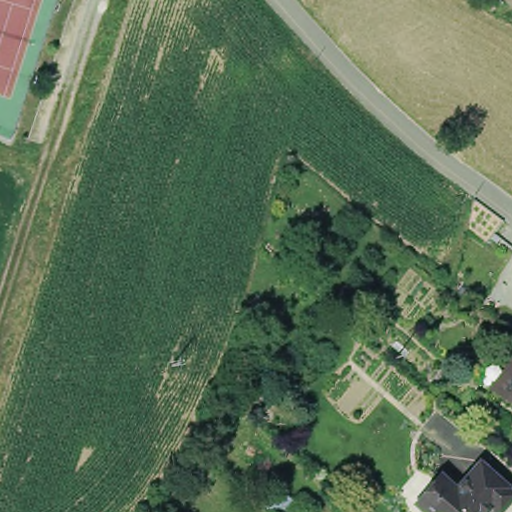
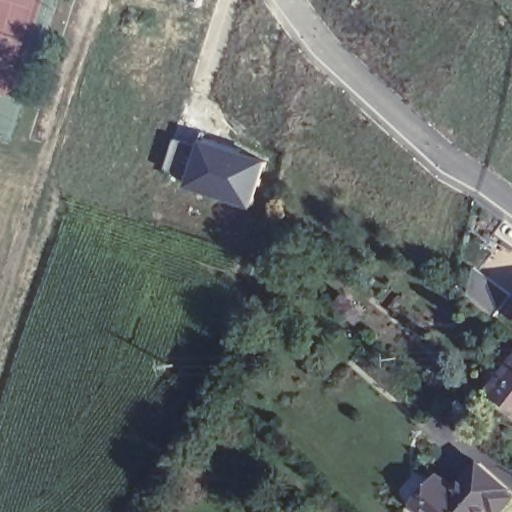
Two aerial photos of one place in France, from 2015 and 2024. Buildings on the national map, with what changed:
new [(199,2),(191,0),(200,0),(199,2)]
new [(160,169),(172,136),(195,143),(200,135),(267,159),(250,209),(182,183),(183,180),(160,169)]
unchanged [(512,403),(495,389),(512,368),(512,403)]
unchanged [(500,487),(499,489),(507,496),(493,512),(489,512),(484,508),(480,512),(429,512),(451,488),(472,463),(500,487)]
unchanged [(451,488),(429,512),(403,512),(401,510),(435,473),(451,488)]

